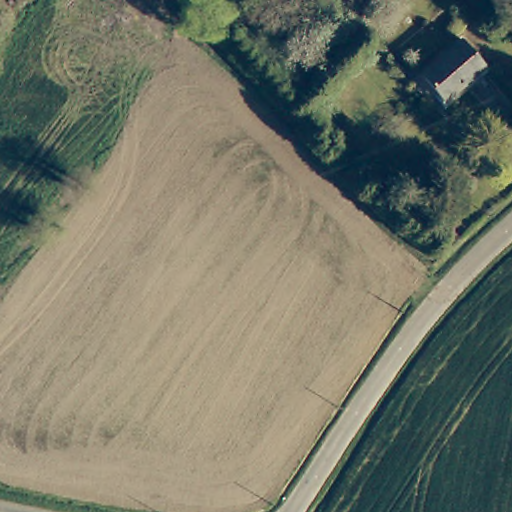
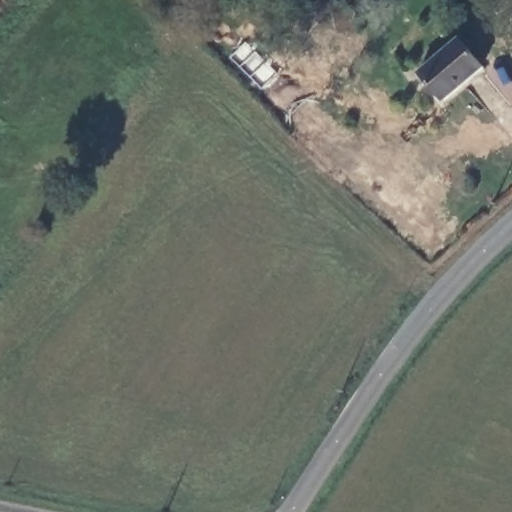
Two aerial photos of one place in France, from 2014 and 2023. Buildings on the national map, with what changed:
unchanged [(458,41),(481,69),(441,102),(417,73),(458,41)]

